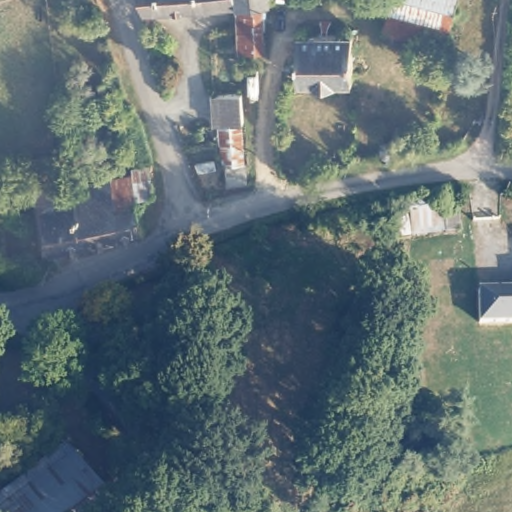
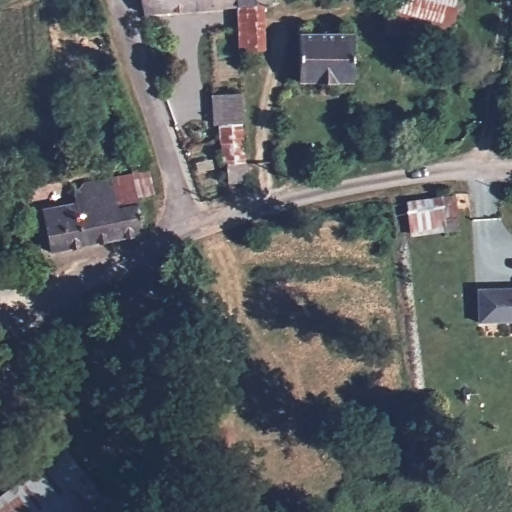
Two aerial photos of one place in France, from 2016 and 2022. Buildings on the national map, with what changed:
unchanged [(237,2),(146,10),(144,0),(237,0),(237,2)]
unchanged [(237,2),(237,0),(268,0),(237,2)]
unchanged [(268,0),(271,50),(239,51),(237,2),(268,0)]
unchanged [(449,45),(404,33),(400,47),(382,42),(393,0),(460,0),(449,45)]
unchanged [(301,77),(302,30),(328,30),(329,77),(301,77)]
unchanged [(328,30),(354,30),(354,78),(329,77),(328,30)]
unchanged [(246,87),(250,160),(258,160),(259,182),(231,187),(230,162),(222,162),(220,122),(214,122),(214,89),(246,87)]
unchanged [(403,141),(405,149),(399,154),(392,152),(390,148),(392,141),(389,141),(388,120),(404,119),(405,140),(403,141)]
unchanged [(88,244),(58,249),(50,207),(74,202),(72,193),(107,187),(106,181),(135,177),(147,235),(88,244)]
unchanged [(459,188),(464,227),(396,239),(391,202),(459,188)]
unchanged [(478,290),(512,289),(512,322),(480,322),(478,290)]
unchanged [(0,512),(0,503),(44,466),(35,455),(59,438),(88,476),(43,512),(0,512)]
unchanged [(118,512),(43,512),(88,476),(118,512)]

